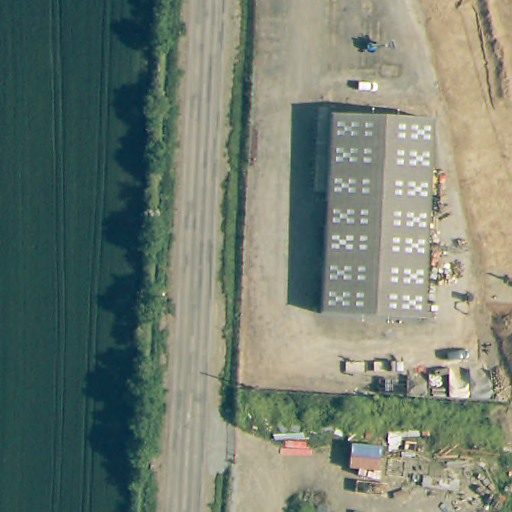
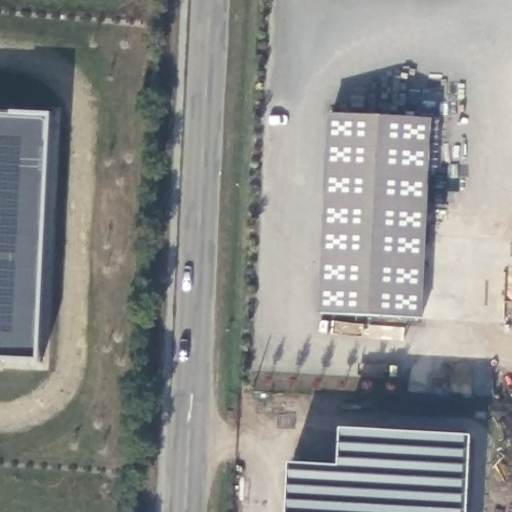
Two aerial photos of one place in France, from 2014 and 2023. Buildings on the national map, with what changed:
new [(54,114),(42,362),(0,360),(0,110),(54,114)]
unchanged [(329,117),(428,123),(418,321),(319,314),(329,117)]
new [(347,469),(349,432),(472,440),(466,512),(290,512),(292,467),(347,469)]

